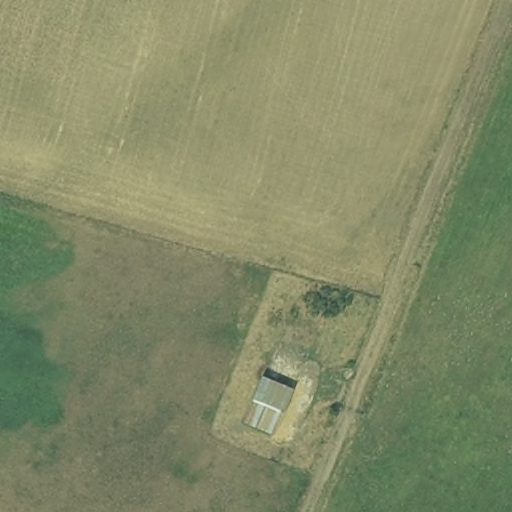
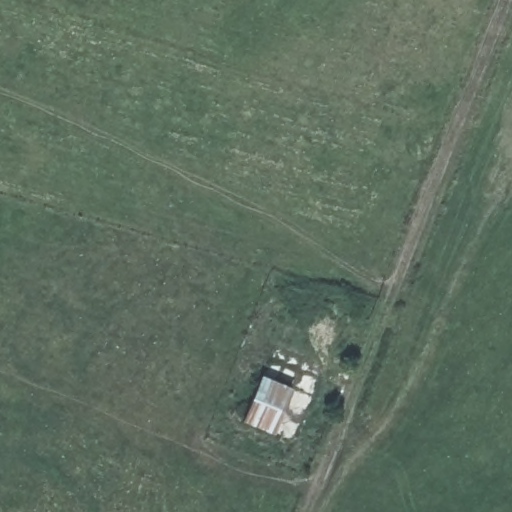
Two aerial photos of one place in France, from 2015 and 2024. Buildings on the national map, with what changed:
unchanged [(277,425),(281,426),(275,438),(240,423),(260,374),(268,377),(272,370),(285,373),(281,383),(293,388),(277,425)]

